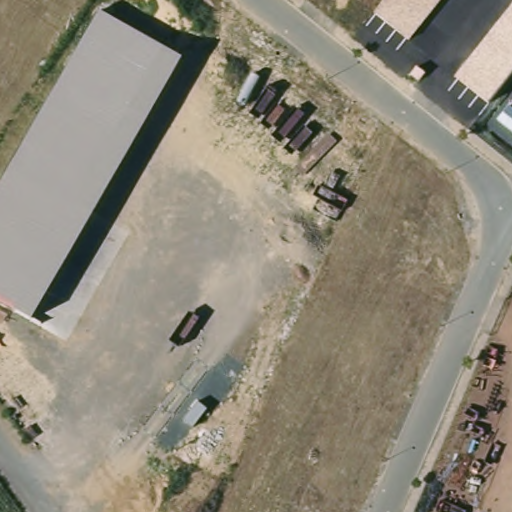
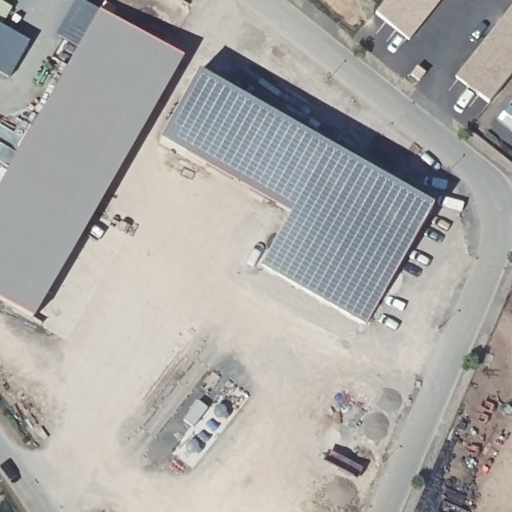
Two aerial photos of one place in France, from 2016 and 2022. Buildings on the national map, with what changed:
unchanged [(408,40),(375,14),(387,0),(441,0),(408,40)]
unchanged [(455,75),(512,5),(512,74),(489,103),(455,75)]
unchanged [(184,57),(35,318),(0,299),(0,189),(101,11),(184,57)]
new [(200,74),(433,206),(366,323),(265,261),(291,212),(162,138),(200,74)]

